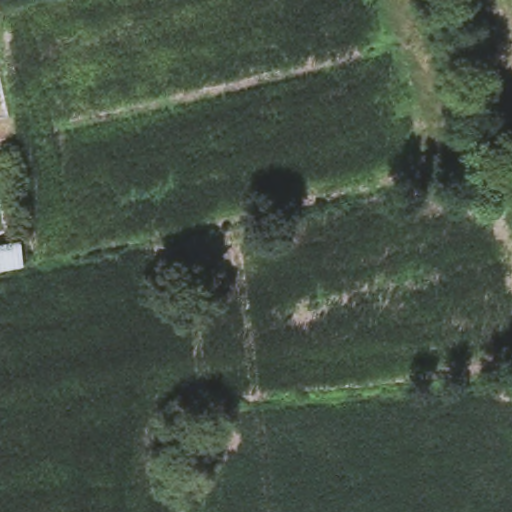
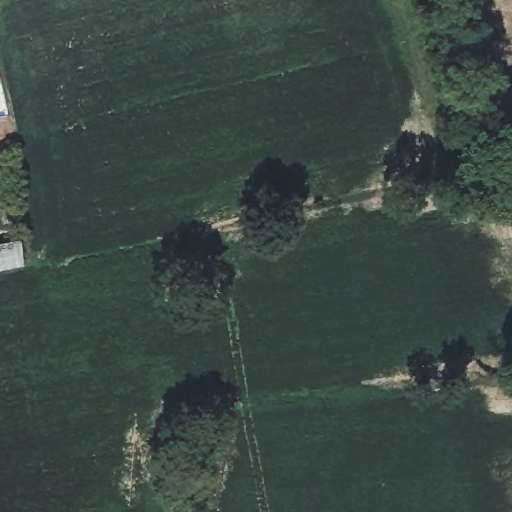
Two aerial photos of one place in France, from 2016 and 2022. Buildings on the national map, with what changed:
unchanged [(29,268),(0,273),(0,240),(24,236),(29,268)]

